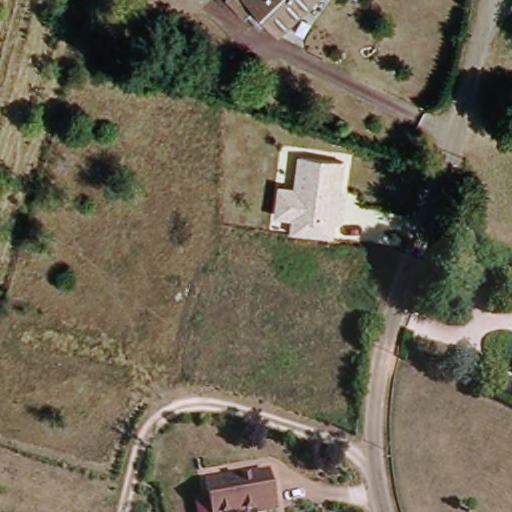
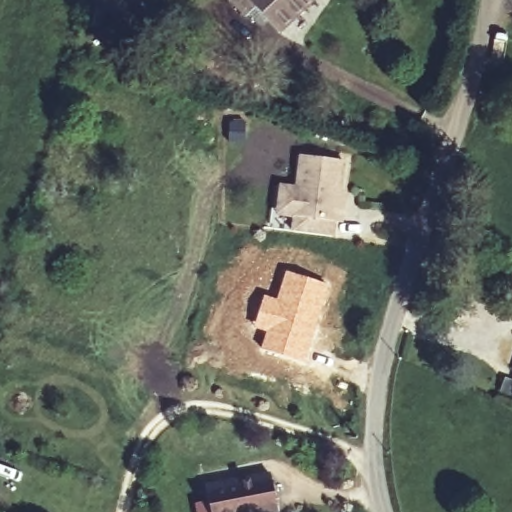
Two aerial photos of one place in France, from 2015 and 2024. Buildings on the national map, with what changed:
unchanged [(247,12),(243,15),(230,0),(313,0),(280,29),(271,19),(260,27),(247,12)]
unchanged [(122,12),(94,35),(86,24),(113,2),(122,12)]
unchanged [(345,162),(341,191),(346,191),(342,224),(336,224),(334,240),(290,234),(292,220),(275,217),(277,186),(295,186),(297,156),(345,162)]
new [(264,293),(276,297),(285,270),(330,284),(305,361),(260,348),(265,332),(253,328),(264,293)]
unchanged [(492,387),(497,374),(512,382),(512,391),(510,395),(492,387)]
unchanged [(273,512),(193,512),(191,501),(207,498),(204,485),(269,473),(276,511),(273,512)]

